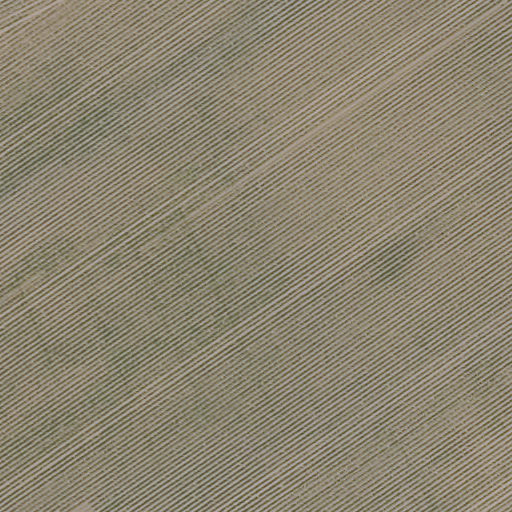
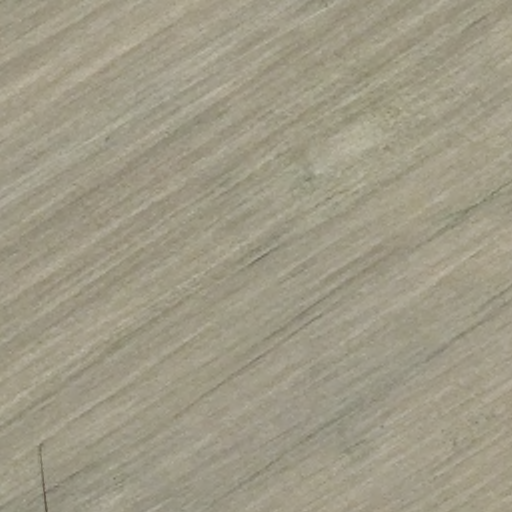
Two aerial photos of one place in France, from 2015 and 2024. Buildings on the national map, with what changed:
[]

